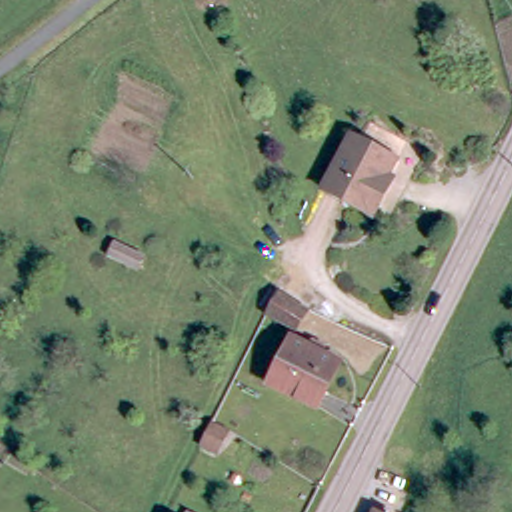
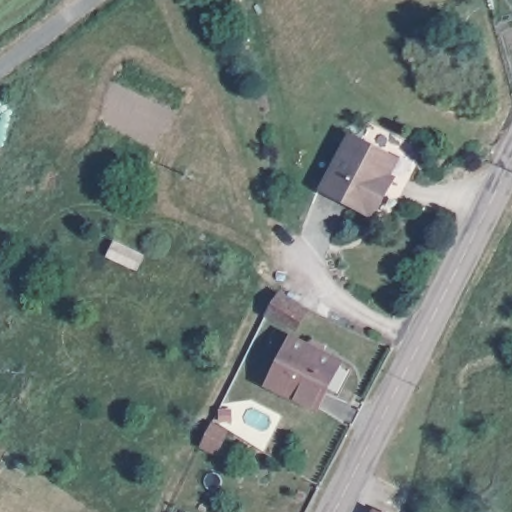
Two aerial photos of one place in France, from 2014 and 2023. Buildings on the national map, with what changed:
unchanged [(369,211),(326,188),(355,138),(396,160),(369,211)]
unchanged [(295,334),(271,321),(280,302),(298,311),(305,318),(295,334)]
unchanged [(297,335),(343,359),(318,407),(272,383),(297,335)]
unchanged [(217,469),(204,461),(210,451),(224,459),(217,469)]
unchanged [(388,512),(375,512),(378,507),(388,512)]

